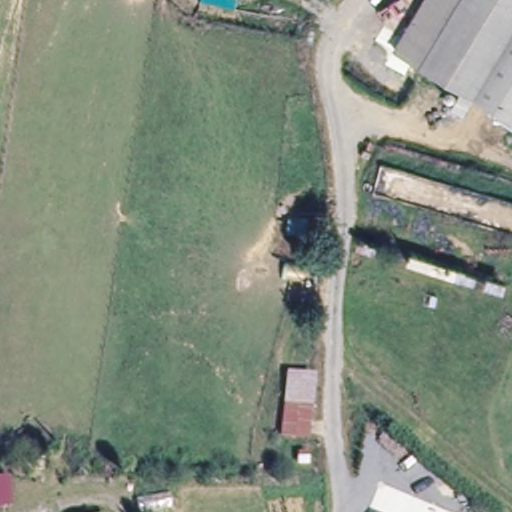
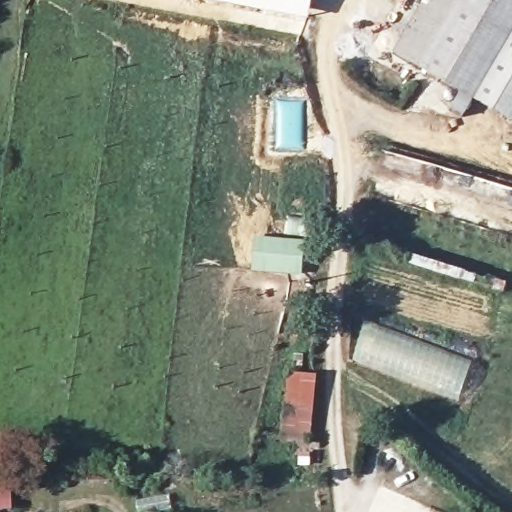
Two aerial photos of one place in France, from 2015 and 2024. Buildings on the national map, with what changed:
new [(207,0),(311,0),(307,19),(207,0)]
new [(423,0),(429,0),(395,54),(393,52),(423,0)]
unchanged [(512,0),(512,121),(476,101),(468,114),(455,107),(464,92),(395,54),(429,0),(512,0)]
new [(254,235),(285,238),(287,217),(308,219),(302,275),(250,271),(254,235)]
new [(459,401),(353,360),(364,322),(472,362),(459,401)]
unchanged [(317,384),(309,450),(280,447),(287,381),(317,384)]
new [(0,510),(0,479),(11,478),(12,510),(0,510)]

